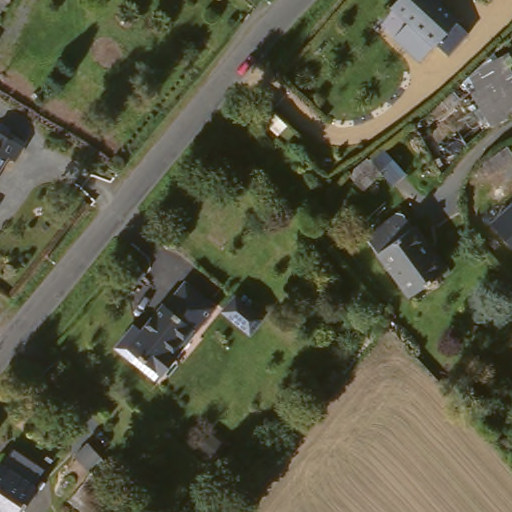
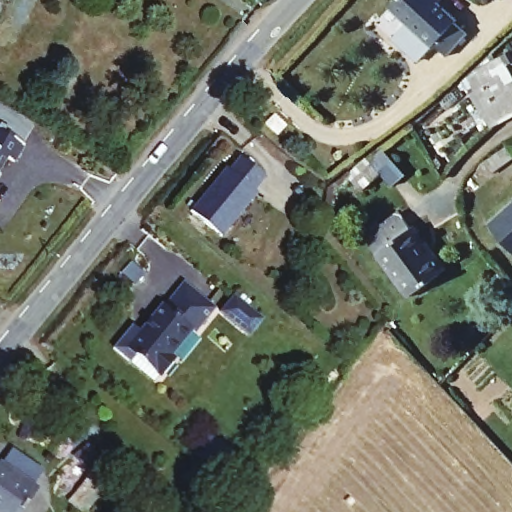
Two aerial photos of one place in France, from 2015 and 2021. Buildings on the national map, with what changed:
unchanged [(0,0),(11,0),(0,19),(0,0)]
unchanged [(407,23),(408,24),(410,22),(393,4),(398,0),(445,0),(440,4),(457,23),(456,24),(468,38),(446,59),(434,46),(417,63),(393,37),(407,23)]
unchanged [(465,84),(501,53),(512,73),(512,120),(492,132),(465,84)]
unchanged [(9,130),(20,136),(15,144),(18,145),(19,149),(12,159),(6,158),(0,167),(0,138),(3,139),(9,130)]
new [(384,150),(406,174),(393,187),(371,163),(384,150)]
new [(228,169),(231,172),(243,159),(267,180),(256,193),(259,196),(222,238),(192,212),(228,169)]
unchanged [(488,224),(512,203),(512,250),(488,224)]
unchanged [(446,274),(410,299),(365,238),(400,209),(446,274)]
unchanged [(116,348),(136,324),(145,332),(167,306),(169,308),(189,284),(220,310),(199,334),(196,332),(175,356),(179,360),(164,378),(139,356),(134,362),(116,348)]
unchanged [(224,446),(244,462),(229,479),(210,463),(224,446)]
unchanged [(39,495),(25,512),(0,512),(0,473),(6,466),(39,495)]

